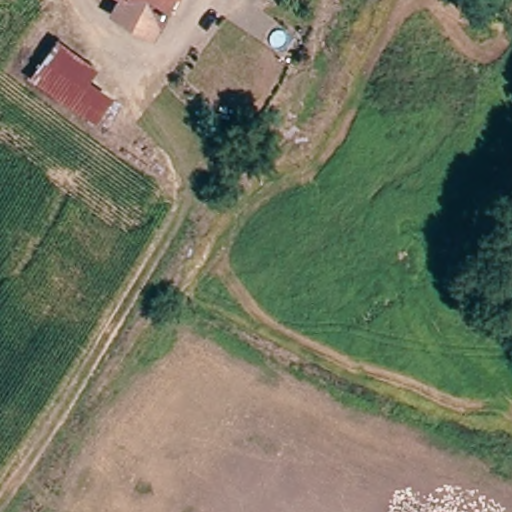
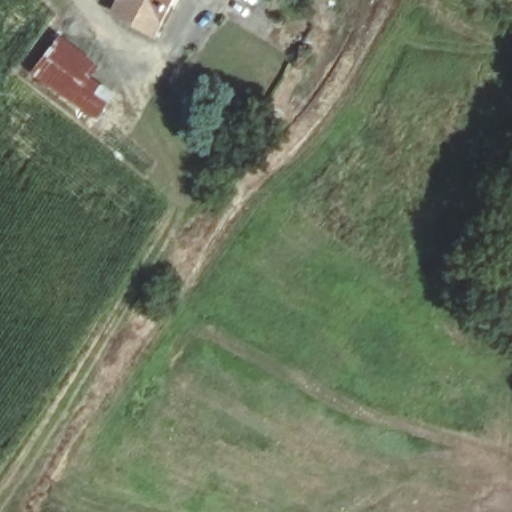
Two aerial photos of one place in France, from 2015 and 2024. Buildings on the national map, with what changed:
unchanged [(101,13),(109,0),(166,0),(141,38),(101,13)]
unchanged [(54,39),(94,69),(82,85),(106,106),(92,126),(52,111),(26,82),(54,39)]

